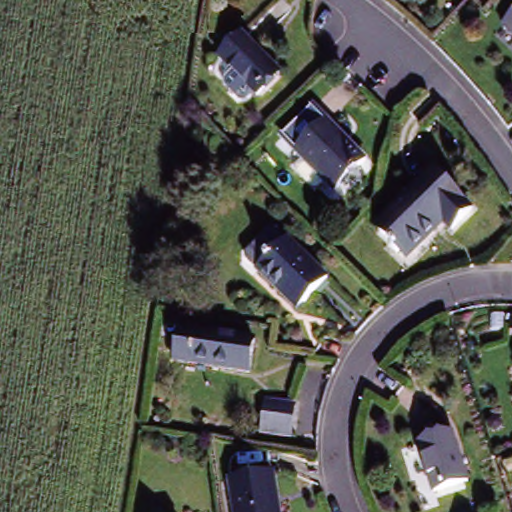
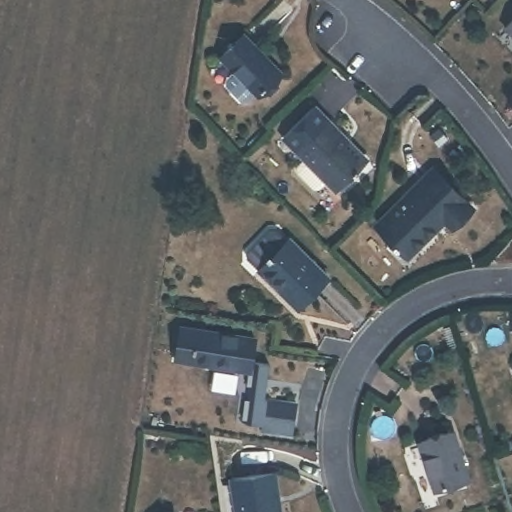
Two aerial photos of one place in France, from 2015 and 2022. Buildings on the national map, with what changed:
unchanged [(512,25),(512,28),(510,27),(512,25)]
unchanged [(267,95),(229,57),(251,35),(289,72),(267,95)]
unchanged [(305,168),(305,161),(311,155),(292,136),(320,109),(322,106),(336,121),(351,136),(374,159),(371,161),(343,188),(334,179),(328,184),(321,185),(305,168)]
unchanged [(444,221),(406,256),(376,225),(434,171),(471,210),(451,229),(444,221)]
unchanged [(268,266),(297,235),(337,273),(306,307),(290,291),(266,269),(268,266)]
unchanged [(180,354),(185,321),(260,334),(255,367),(180,354)]
unchanged [(294,396),(290,427),(259,422),(264,392),(294,396)]
unchanged [(430,487),(414,437),(448,426),(465,476),(430,487)]
unchanged [(273,468),(275,489),(279,512),(237,512),(231,474),(273,468)]

